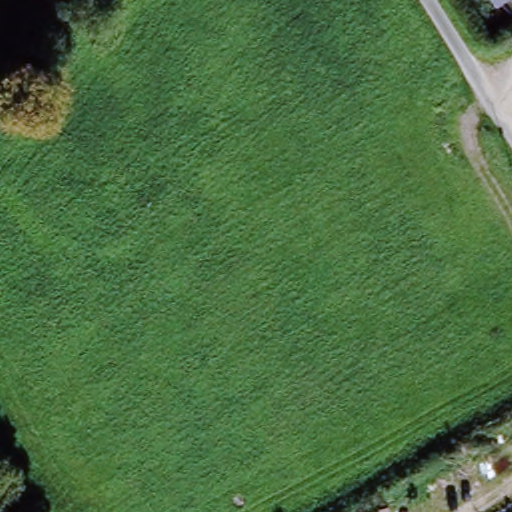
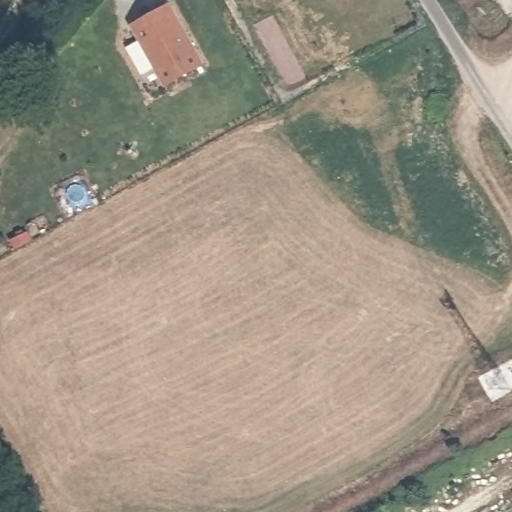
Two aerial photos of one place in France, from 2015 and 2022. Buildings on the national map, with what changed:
new [(205,65),(164,87),(131,24),(172,3),(205,65)]

